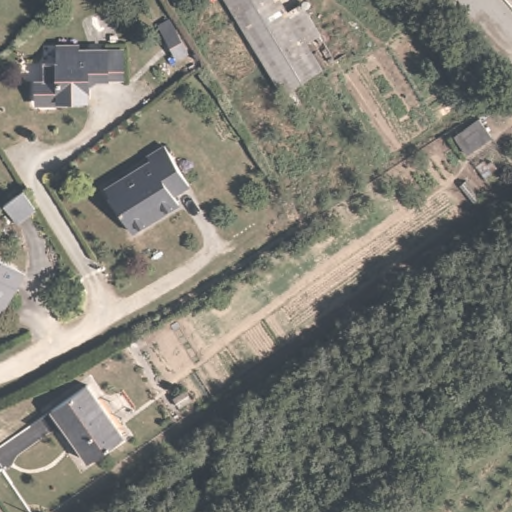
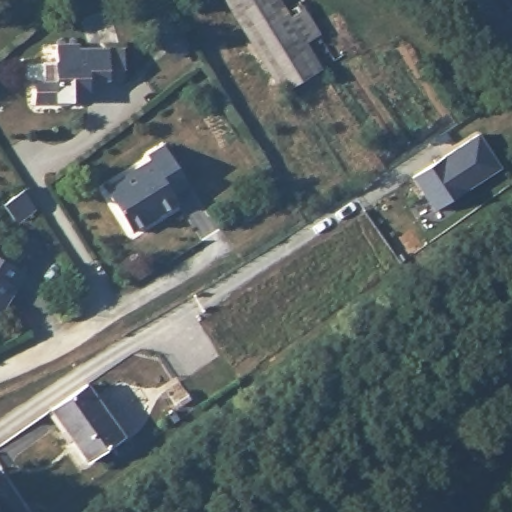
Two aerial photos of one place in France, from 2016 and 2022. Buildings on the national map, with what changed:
unchanged [(321,70),(294,86),(303,101),(293,107),(227,0),(279,0),(304,42),(321,70)]
unchanged [(304,42),(279,0),(302,0),(320,30),(304,42)]
unchanged [(80,79),(81,102),(53,103),(53,108),(36,108),(28,101),(28,80),(38,80),(38,61),(53,61),(53,44),(75,42),(75,47),(100,47),(100,49),(116,48),(117,76),(101,76),(101,78),(80,79)]
demolished [(512,87),(512,100),(506,92),(512,87)]
demolished [(478,119),(491,135),(467,154),(454,137),(478,119)]
new [(480,133),(501,167),(435,212),(412,177),(480,133)]
unchanged [(150,161),(148,158),(166,146),(193,185),(175,196),(180,204),(134,232),(107,188),(150,161)]
demolished [(487,160),(494,170),(483,177),(476,167),(487,160)]
demolished [(467,184),(480,202),(472,208),(459,190),(467,184)]
unchanged [(21,188),(33,206),(13,219),(2,204),(21,188)]
unchanged [(11,303),(7,300),(0,312),(0,252),(31,270),(11,303)]
unchanged [(86,383),(124,435),(89,461),(67,431),(69,430),(55,409),(53,410),(51,408),(86,383)]

